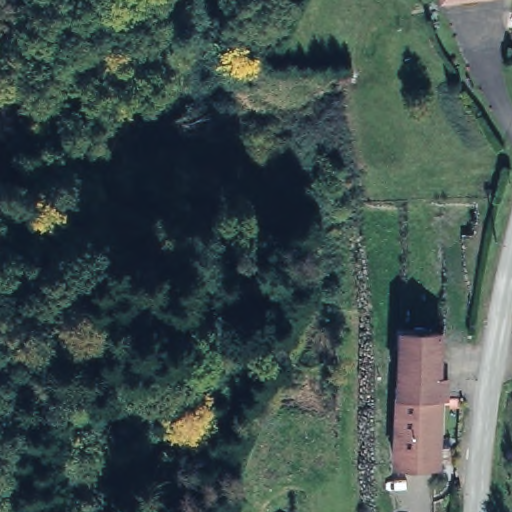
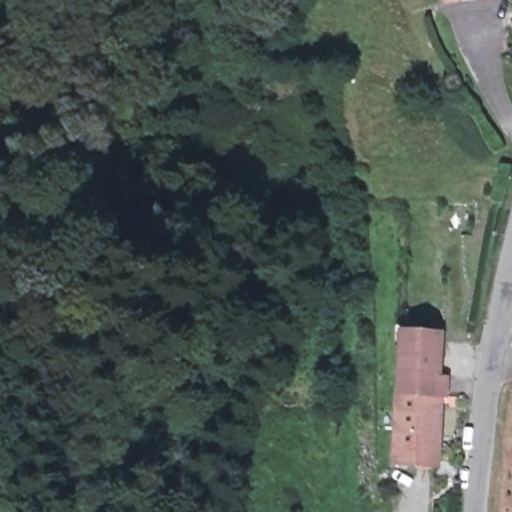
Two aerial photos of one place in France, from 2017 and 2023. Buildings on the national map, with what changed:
unchanged [(400,390),(403,325),(445,328),(443,372),(450,373),(450,392),(470,394),(470,395),(450,393),(400,390)]
unchanged [(450,393),(447,435),(440,434),(438,466),(397,463),(400,390),(450,393)]

